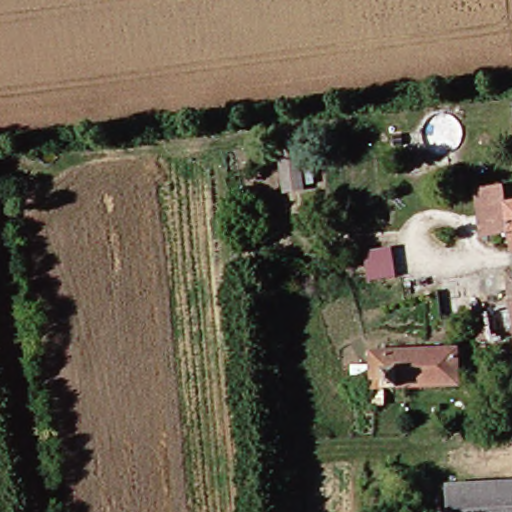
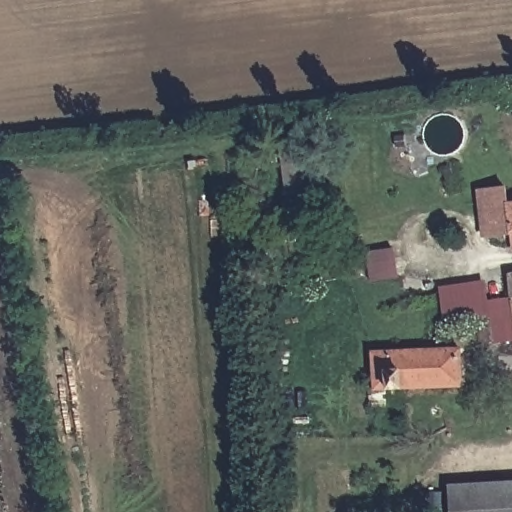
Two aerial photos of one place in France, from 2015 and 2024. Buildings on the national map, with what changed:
unchanged [(294,197),(289,152),(308,149),(314,190),(294,197)]
unchanged [(510,230),(480,231),(477,192),(483,186),(505,185),(505,200),(512,200),(512,248),(510,248),(510,230)]
new [(510,297),(508,273),(512,273),(512,340),(492,343),(490,319),(444,326),(439,286),(485,282),(487,301),(510,297)]
unchanged [(474,348),(476,381),(375,388),(372,353),(474,348)]
unchanged [(512,484),(512,512),(466,512),(465,484),(512,484)]

